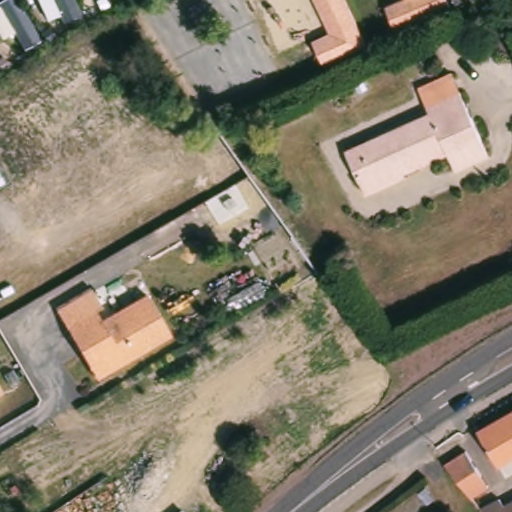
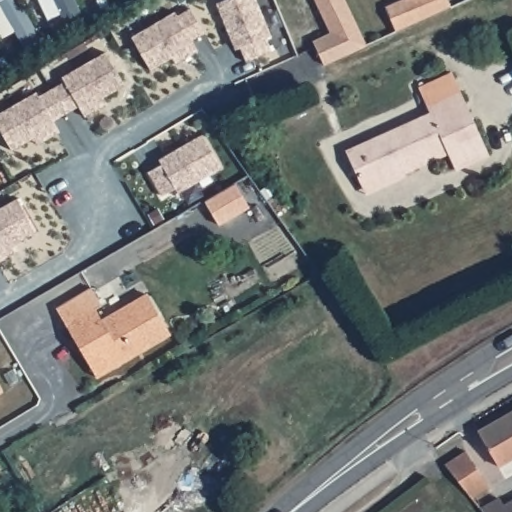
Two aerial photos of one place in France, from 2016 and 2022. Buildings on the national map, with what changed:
new [(255,0),(259,0),(279,44),(275,46),(281,60),(256,71),(250,58),(245,60),(224,14),(255,0)]
unchanged [(366,44),(322,65),(310,41),(328,33),(313,0),(345,0),(366,44)]
unchanged [(451,3),(396,27),(385,2),(391,0),(450,0),(451,3)]
new [(178,17),(181,21),(194,14),(208,37),(195,45),(201,56),(185,65),(182,58),(154,75),(135,42),(178,17)]
new [(66,81),(63,77),(107,52),(125,84),(97,100),(101,107),(86,116),(79,105),(66,112),(53,89),(66,81)]
unchanged [(406,181),(363,200),(360,192),(350,168),(343,154),(362,145),(427,118),(416,91),(450,77),(458,95),(486,160),(453,174),(446,159),(404,177),(406,181)]
new [(40,96),(53,89),(66,112),(53,120),(60,131),(44,140),(40,133),(13,149),(0,128),(0,114),(37,92),(40,96)]
new [(164,169),(162,164),(205,140),(223,172),(180,197),(178,192),(165,200),(151,176),(164,169)]
new [(237,187),(251,211),(220,228),(207,204),(237,187)]
new [(37,230),(9,246),(13,253),(0,261),(0,209),(18,198),(37,230)]
unchanged [(82,359),(63,327),(52,310),(87,290),(98,307),(93,309),(100,321),(145,294),(166,333),(105,370),(92,378),(82,359)]
unchanged [(502,462),(481,426),(512,409),(512,457),(502,462)]
unchanged [(468,447),(488,482),(473,492),(453,465),(448,459),(468,447)]
unchanged [(505,507),(512,504),(512,512),(485,512),(483,510),(501,499),(505,507)]

